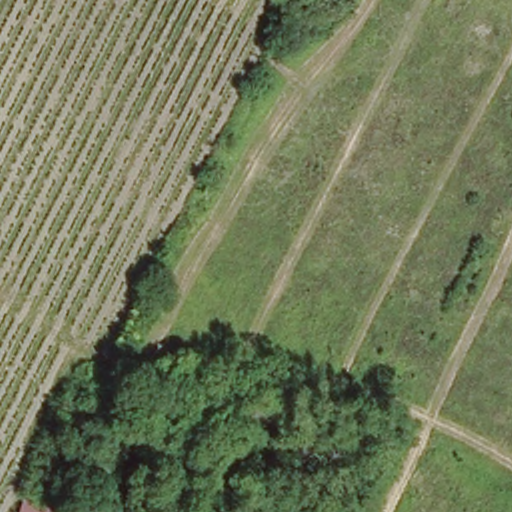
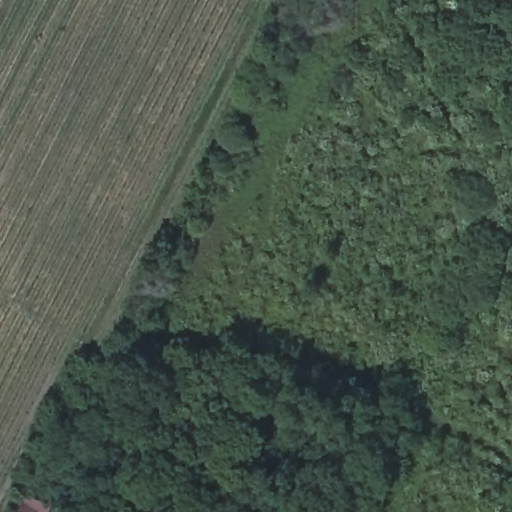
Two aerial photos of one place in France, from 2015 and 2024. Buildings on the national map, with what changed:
unchanged [(18,493),(45,501),(42,512),(12,512),(18,493)]

